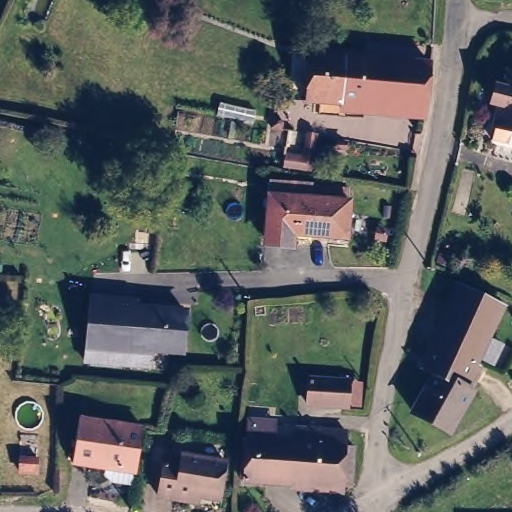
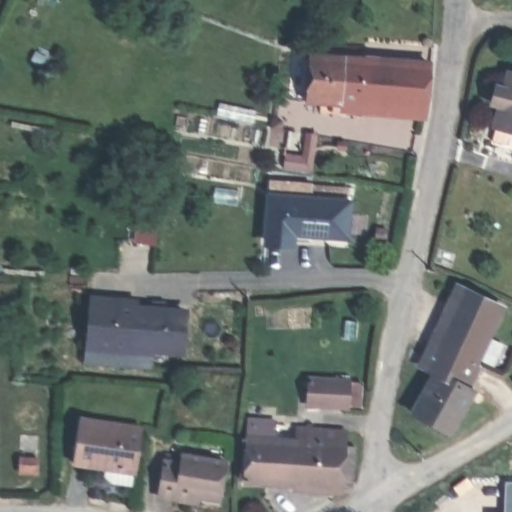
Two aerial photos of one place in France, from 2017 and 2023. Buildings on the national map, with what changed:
unchanged [(419,115),(418,115),(300,101),(305,55),(423,69),(419,115)]
unchanged [(489,126),(506,64),(512,65),(512,133),(489,126)]
unchanged [(291,236),(290,249),(260,246),(265,174),(355,182),(346,240),(291,236)]
unchanged [(466,383),(476,388),(453,427),(418,407),(441,368),(430,361),(470,283),(507,303),(466,383)]
unchanged [(185,345),(91,338),(95,300),(189,306),(185,345)]
unchanged [(351,404),(311,401),(314,376),(353,379),(351,404)]
unchanged [(101,464),(71,458),(76,418),(141,429),(135,466),(135,471),(101,464)]
unchanged [(340,489),(241,479),(247,430),(268,432),(267,442),(280,443),(282,429),(345,435),(345,447),(358,448),(358,449),(353,491),(340,489)]
unchanged [(171,498),(156,496),(163,455),(171,456),(171,460),(176,460),(177,453),(190,455),(222,460),(216,498),(195,495),(194,501),(171,498)]
unchanged [(26,472),(16,472),(16,459),(26,459),(26,472)]
new [(505,480),(512,480),(512,512),(504,512),(505,480)]

